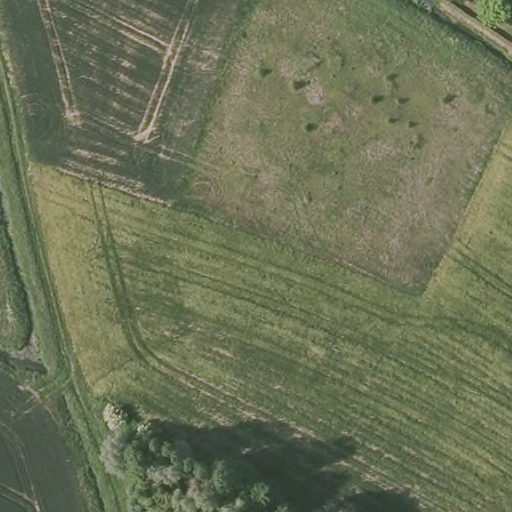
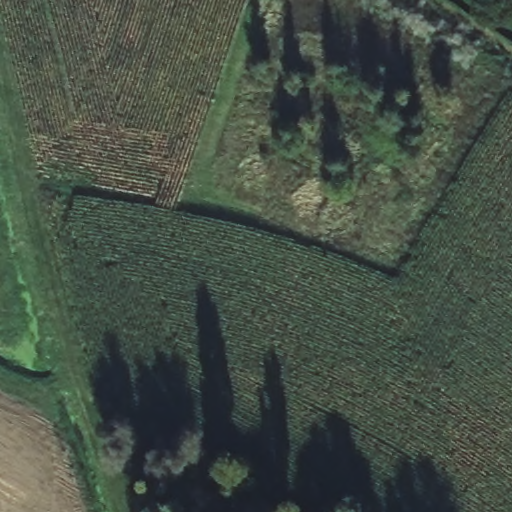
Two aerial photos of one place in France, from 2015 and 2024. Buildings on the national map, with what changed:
[]

